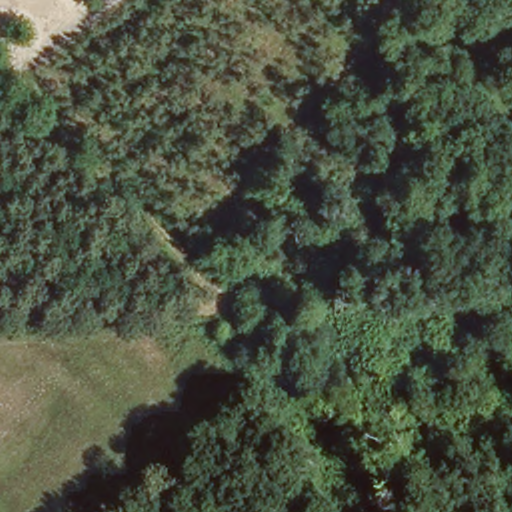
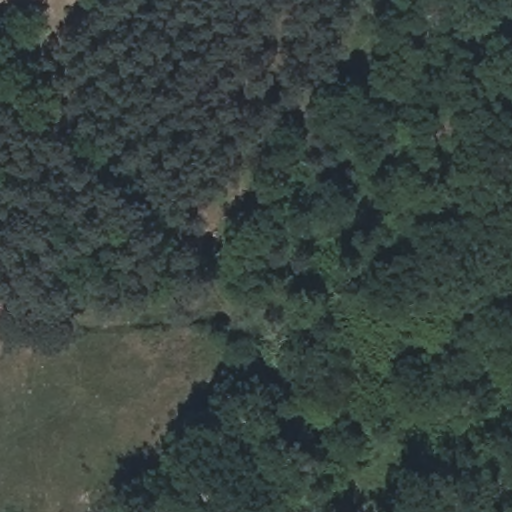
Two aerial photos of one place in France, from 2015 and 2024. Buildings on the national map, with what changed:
[]

